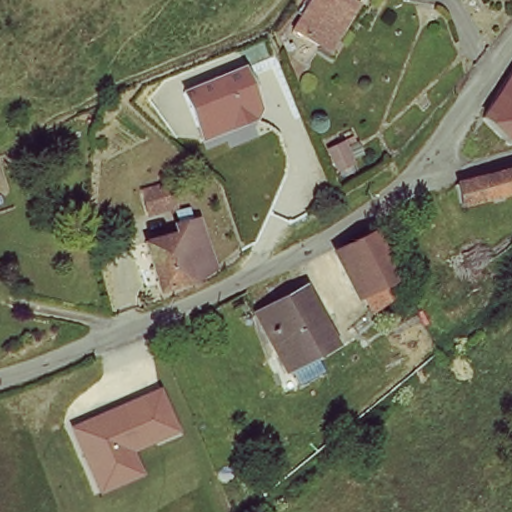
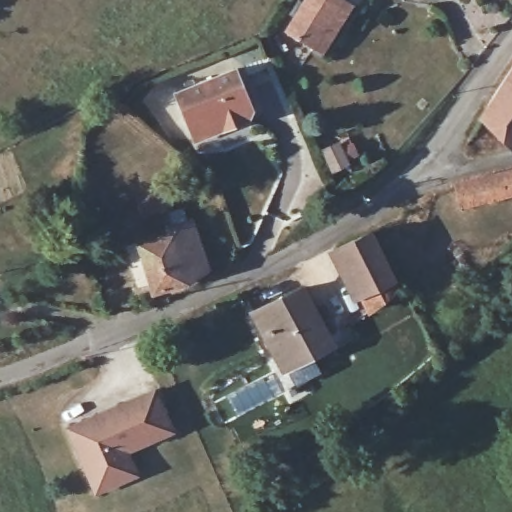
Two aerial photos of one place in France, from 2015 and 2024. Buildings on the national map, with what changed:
unchanged [(348,0),(314,45),(290,25),(308,0),(348,0)]
unchanged [(173,92),(237,67),(255,111),(249,122),(195,142),(173,92)]
unchanged [(480,122),(512,71),(512,144),(480,122)]
unchanged [(346,161),(332,168),(322,149),(336,143),(346,161)]
unchanged [(475,198),(470,179),(504,167),(510,187),(475,198)]
unchanged [(168,201),(147,209),(139,188),(160,180),(168,201)]
unchanged [(209,266),(195,274),(159,288),(143,245),(177,231),(173,223),(191,217),(209,266)]
unchanged [(363,300),(356,288),(333,246),(367,229),(395,280),(363,300)]
unchanged [(274,344),(257,313),(302,290),(317,316),(274,344)]
unchanged [(274,344),(317,316),(330,341),(286,366),(274,344)]
unchanged [(174,431),(129,452),(139,475),(95,494),(65,428),(155,389),(174,431)]

